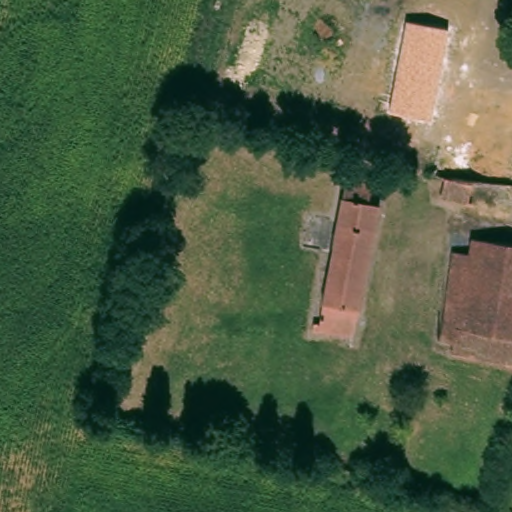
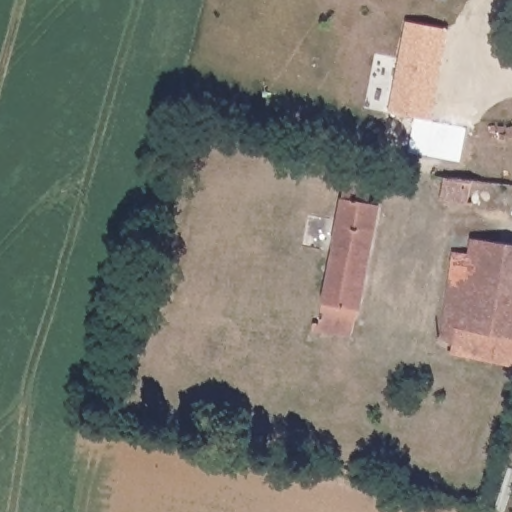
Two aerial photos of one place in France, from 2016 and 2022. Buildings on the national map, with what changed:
unchanged [(390,112),(407,21),(448,29),(431,119),(390,112)]
unchanged [(351,174),(373,181),(368,204),(379,208),(347,337),(313,329),(351,174)]
unchanged [(474,182),(471,204),(443,200),(445,179),(474,182)]
unchanged [(445,351),(447,339),(436,336),(450,248),(466,250),(468,237),(512,245),(512,364),(445,351)]

